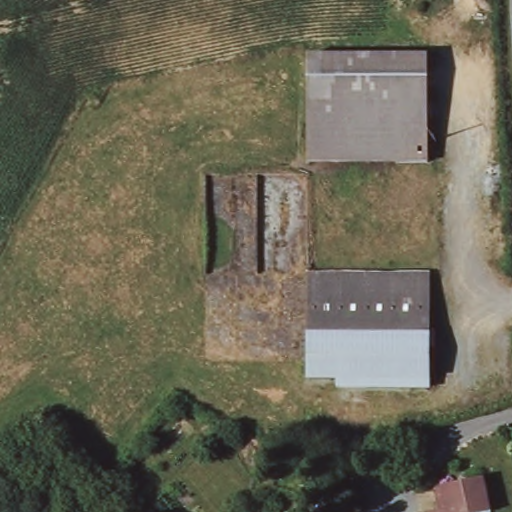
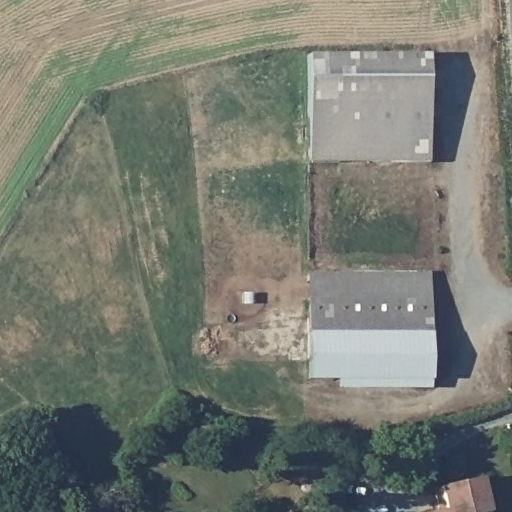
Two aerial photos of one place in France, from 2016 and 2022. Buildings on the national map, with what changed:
unchanged [(305,59),(384,56),(425,55),(431,162),(310,167),(309,151),(305,59)]
unchanged [(399,359),(339,362),(339,382),(326,383),(309,363),(305,277),(426,272),(431,387),(400,388),(399,359)]
unchanged [(340,392),(339,382),(339,362),(399,359),(400,388),(340,392)]
unchanged [(462,511),(459,510),(449,503),(444,500),(443,500),(426,489),(422,487),(474,477),(481,512),(463,512),(462,512),(462,511)]
unchanged [(443,500),(444,500),(449,503),(459,510),(462,511),(462,512),(463,512),(445,512),(443,502),(443,500)]

